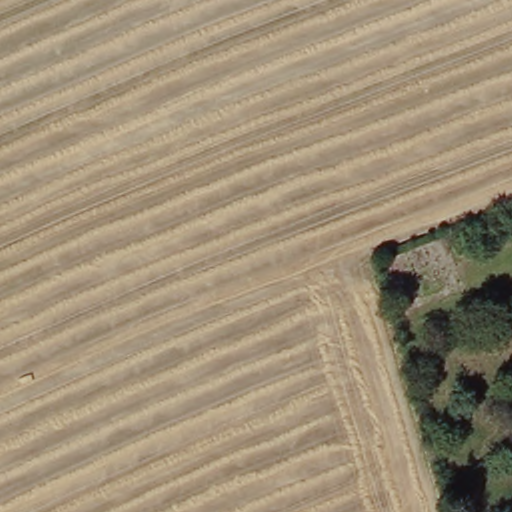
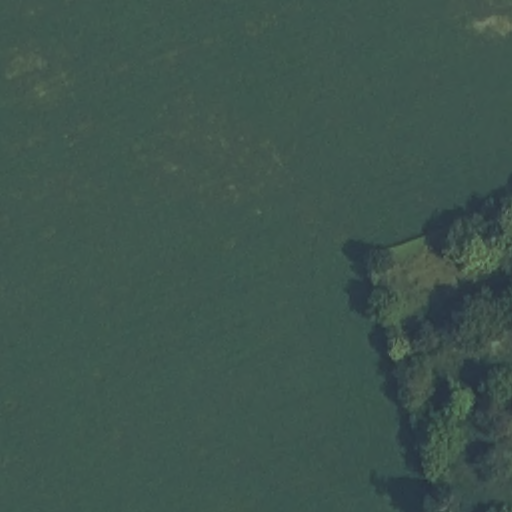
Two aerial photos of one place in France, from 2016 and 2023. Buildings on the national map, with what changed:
[]

